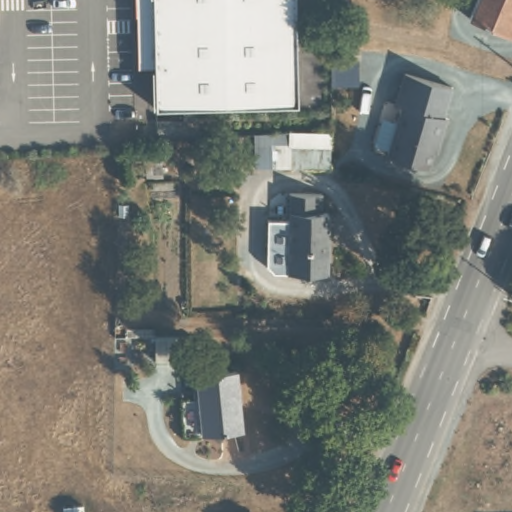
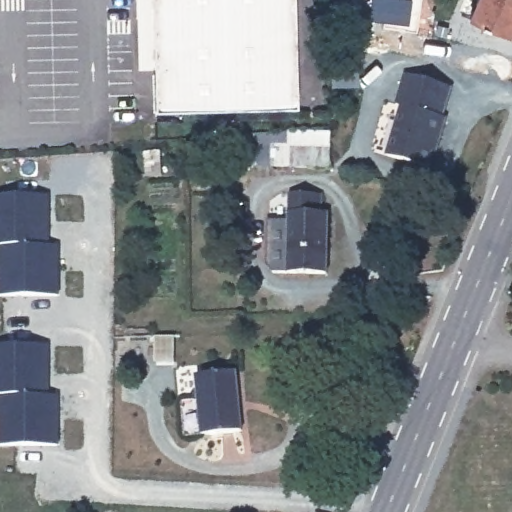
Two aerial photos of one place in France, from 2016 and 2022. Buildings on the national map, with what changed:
unchanged [(154,109),(151,8),(133,9),(133,0),(295,0),(297,61),(182,65),(183,108),(154,109)]
unchanged [(476,15),(482,0),(512,0),(512,31),(476,15)]
unchanged [(297,61),(298,104),(183,108),(182,65),(297,61)]
unchanged [(452,88),(438,153),(432,152),(429,169),(389,158),(402,105),(397,104),(404,77),(452,88)]
unchanged [(328,159),(289,161),(287,142),(327,139),(328,159)]
unchanged [(328,268),(290,266),(294,187),(325,187),(325,208),(332,208),(332,234),(329,234),(328,250),(328,268)]
new [(49,245),(58,246),(59,296),(0,296),(0,193),(48,192),(49,245)]
new [(49,395),(59,396),(59,446),(0,446),(0,345),(48,344),(49,395)]
unchanged [(242,421),(203,423),(198,365),(236,361),(242,421)]

